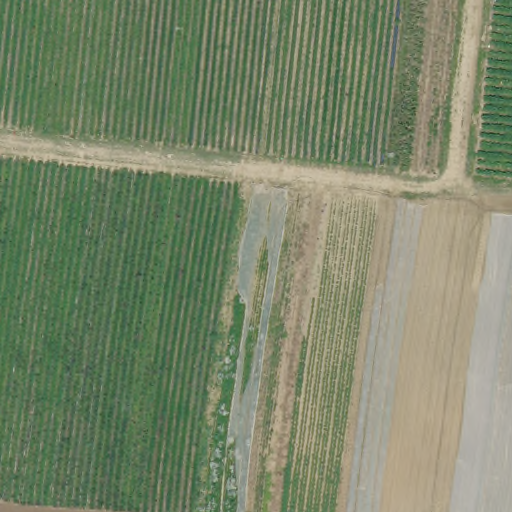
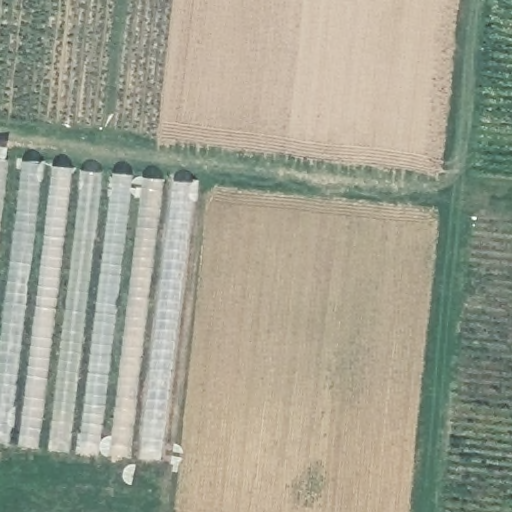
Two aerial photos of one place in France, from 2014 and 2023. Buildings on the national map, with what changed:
new [(0,218),(0,147),(9,149),(0,218)]
new [(159,460),(0,443),(0,362),(24,162),(194,181),(159,460)]

